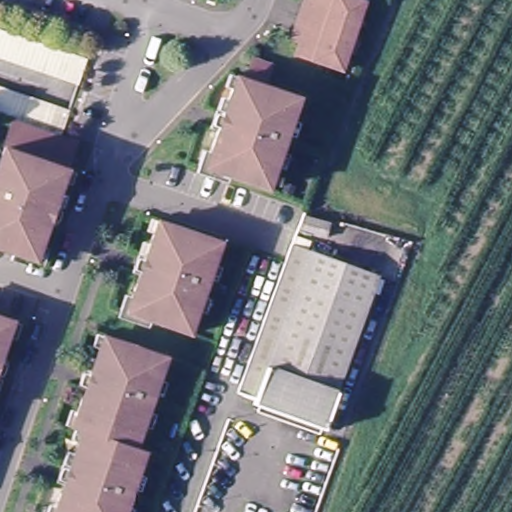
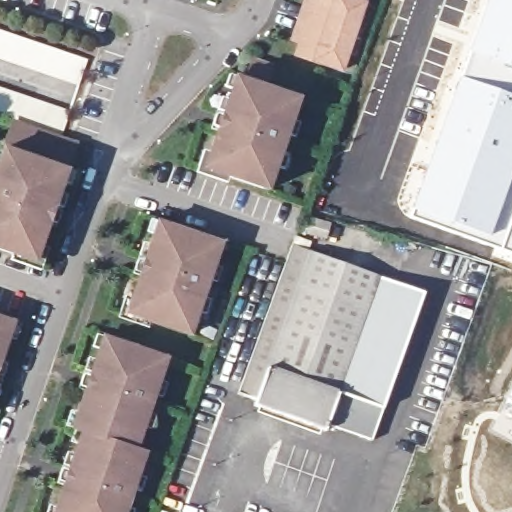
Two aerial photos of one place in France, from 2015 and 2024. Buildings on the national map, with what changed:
unchanged [(309,10),(312,0),(343,0),(361,6),(350,40),(296,22),(301,8),(309,10)]
new [(459,76),(485,0),(512,0),(512,218),(502,249),(409,215),(441,124),(459,76)]
unchanged [(0,22),(87,49),(80,72),(0,48),(0,22)]
unchanged [(350,40),(339,74),(293,59),(299,39),(292,36),(296,22),(350,40)]
unchanged [(209,133),(214,116),(220,119),(233,81),(243,85),(249,66),(268,71),(262,91),(297,103),(267,194),(203,173),(215,136),(209,133)]
unchanged [(59,138),(0,118),(0,83),(70,106),(59,138)]
unchanged [(50,227),(38,263),(0,250),(0,165),(13,126),(77,148),(56,210),(62,212),(56,229),(50,227)]
unchanged [(300,237),(309,214),(339,223),(331,246),(300,237)]
new [(512,218),(512,252),(502,249),(512,218)]
unchanged [(215,243),(185,334),(121,313),(134,275),(128,273),(133,257),(139,259),(151,222),(215,243)]
unchanged [(253,376),(250,375),(290,264),(296,251),(297,249),(383,281),(359,347),(342,395),(329,432),(259,408),(262,401),(246,395),(253,376)]
new [(359,347),(383,281),(423,296),(383,409),(342,395),(359,347)]
unchanged [(0,357),(0,320),(11,324),(0,357)]
unchanged [(81,390),(74,388),(80,373),(86,375),(99,337),(162,358),(132,450),(78,432),(68,429),(81,390)]
unchanged [(0,362),(4,363),(0,377),(0,362)]
new [(507,401),(512,390),(512,404),(507,401)]
unchanged [(141,453),(122,512),(51,512),(60,485),(54,483),(59,467),(65,469),(78,432),(132,450),(141,453)]

